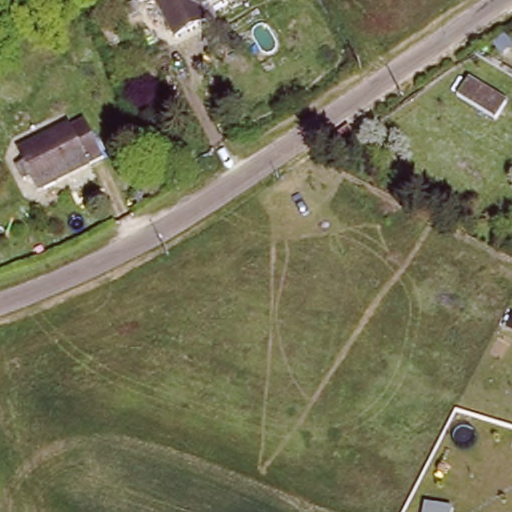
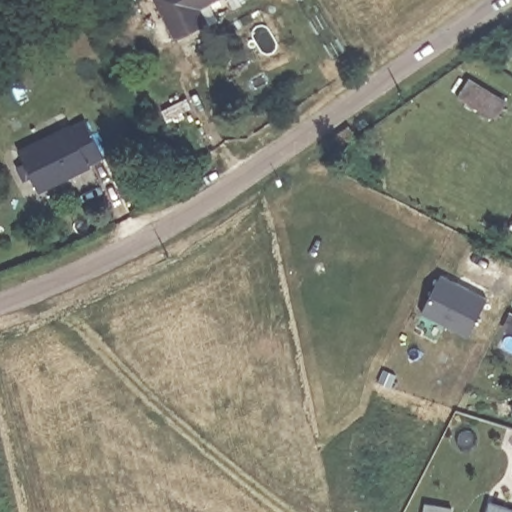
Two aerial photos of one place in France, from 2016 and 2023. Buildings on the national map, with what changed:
unchanged [(160,0),(222,0),(202,10),(212,29),(183,44),(160,0)]
unchanged [(460,98),(467,80),(482,86),(508,97),(500,115),(487,110),(460,98)]
unchanged [(91,116),(111,154),(43,189),(24,151),(91,116)]
new [(441,275),(488,298),(468,335),(422,312),(441,275)]

